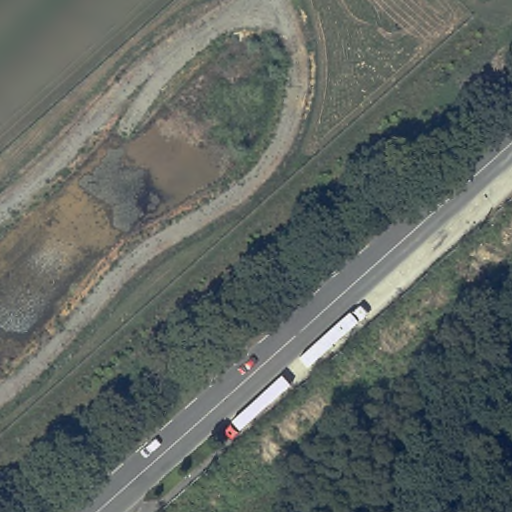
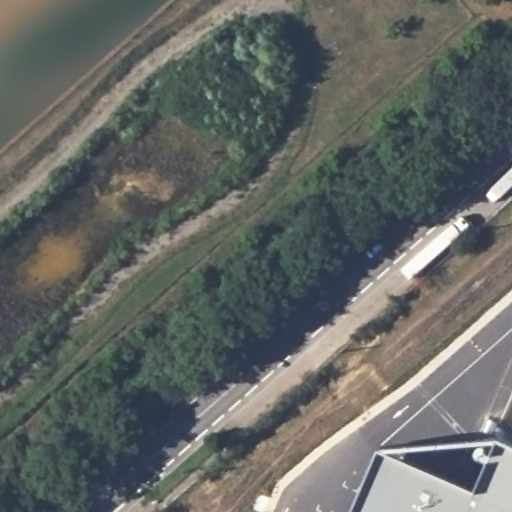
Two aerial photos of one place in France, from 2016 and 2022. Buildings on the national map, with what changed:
new [(497,439),(512,445),(512,512),(349,512),(377,449),(497,439)]

